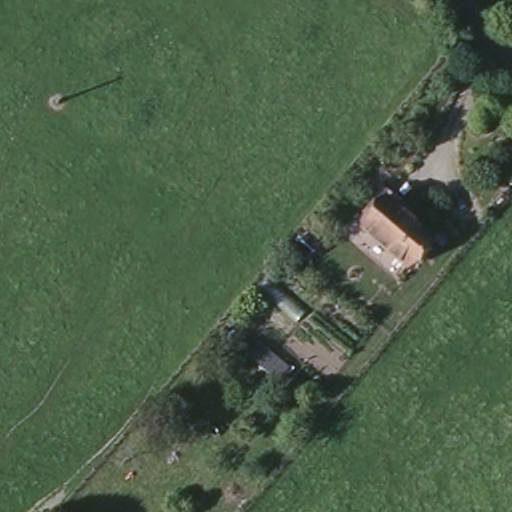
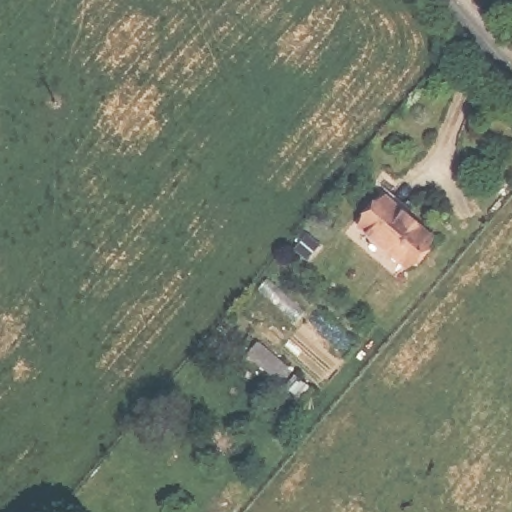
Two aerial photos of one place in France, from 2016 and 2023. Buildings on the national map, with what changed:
unchanged [(389,192),(437,229),(414,264),(364,225),(389,192)]

